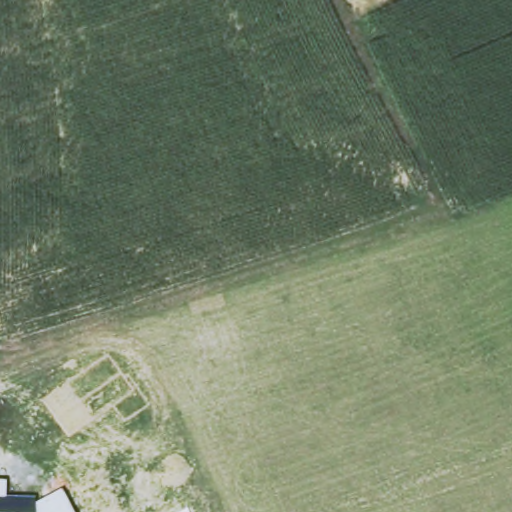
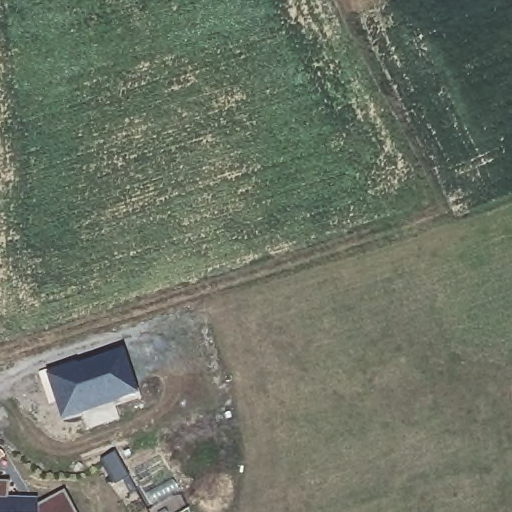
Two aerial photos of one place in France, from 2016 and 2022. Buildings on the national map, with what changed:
new [(140,397),(114,405),(118,417),(86,427),(81,412),(60,419),(46,374),(67,367),(68,371),(75,368),(75,366),(120,351),(131,383),(135,381),(140,397)]
unchanged [(5,484),(6,502),(34,503),(34,507),(62,493),(72,512),(0,512),(0,484),(5,484)]

